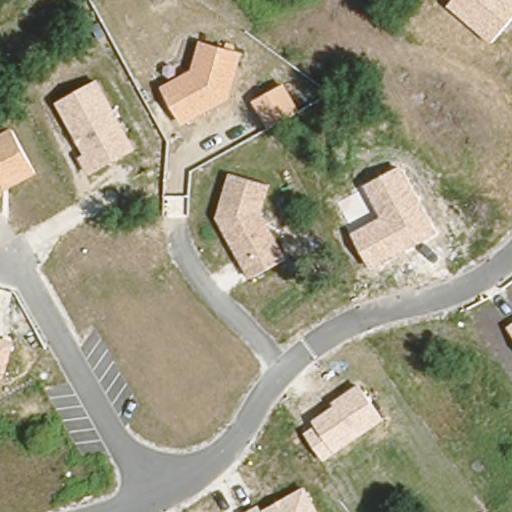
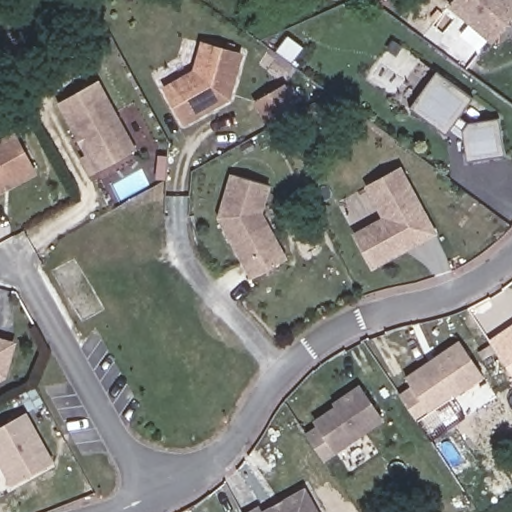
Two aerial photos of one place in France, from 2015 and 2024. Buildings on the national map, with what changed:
unchanged [(448,6),(453,0),(512,0),(512,19),(492,41),(448,6)]
unchanged [(230,99),(183,126),(162,86),(192,69),(200,41),(242,52),(230,99)]
new [(433,72),(470,100),(457,118),(465,124),(497,118),(503,156),(465,162),(458,131),(451,125),(442,137),(406,109),(433,72)]
unchanged [(57,102),(99,80),(136,149),(90,174),(80,157),(85,154),(57,102)]
unchanged [(267,129),(253,100),(285,83),(300,111),(267,129)]
unchanged [(14,127),(37,173),(0,193),(0,135),(14,127)]
unchanged [(438,234),(371,270),(352,233),(382,217),(365,185),(401,166),(438,234)]
unchanged [(262,213),(287,258),(250,279),(217,217),(231,173),(271,185),(262,213)]
unchanged [(512,324),(512,334),(507,327),(512,324)]
unchanged [(16,341),(7,377),(0,381),(0,337),(16,341)]
new [(417,422),(399,396),(412,386),(403,375),(460,339),(484,377),(417,422)]
unchanged [(317,426),(313,420),(335,405),(332,402),(360,383),(384,419),(335,452),(323,461),(305,432),(317,426)]
new [(22,412),(50,462),(9,484),(0,468),(0,425),(22,412)]
unchanged [(305,487),(319,512),(247,512),(260,505),(262,510),(305,487)]

